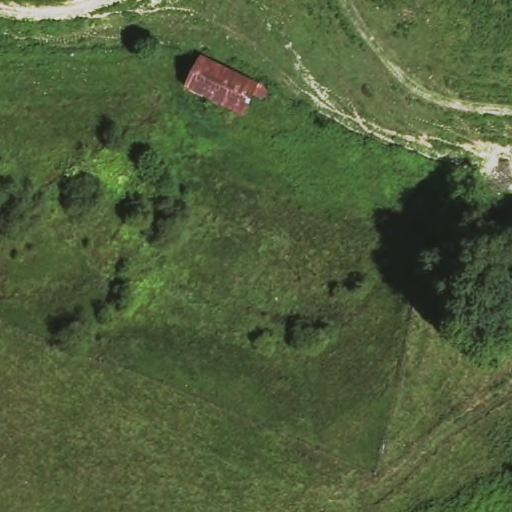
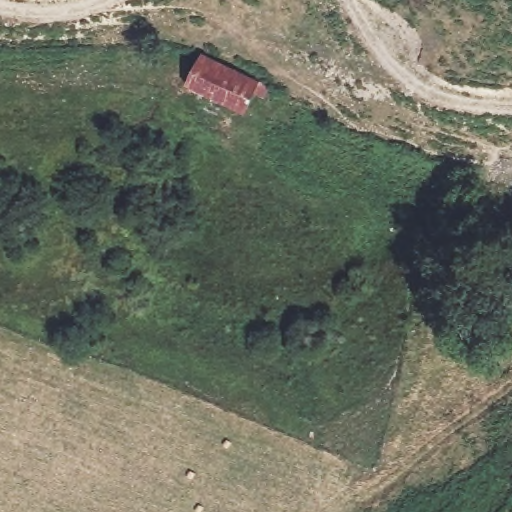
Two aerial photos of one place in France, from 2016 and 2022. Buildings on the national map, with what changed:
unchanged [(198,53),(256,83),(240,118),(182,86),(198,53)]

